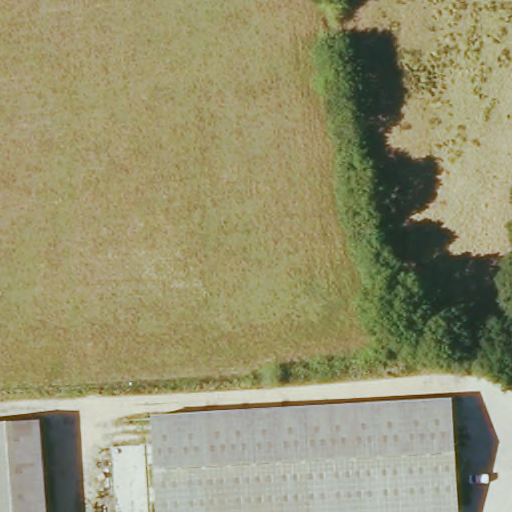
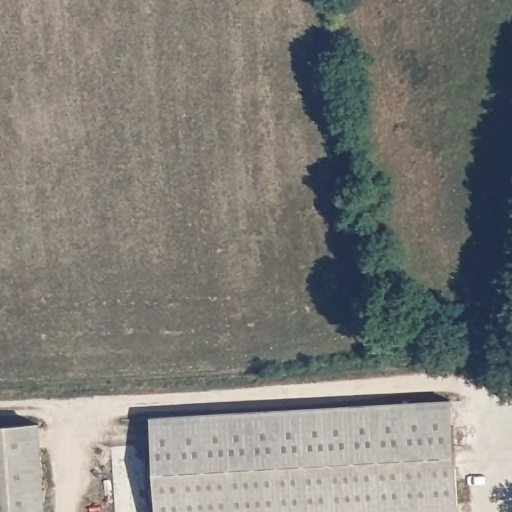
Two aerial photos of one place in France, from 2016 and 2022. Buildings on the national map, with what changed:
unchanged [(152,418),(452,399),(459,512),(157,512),(152,418)]
unchanged [(0,428),(41,425),(48,512),(0,512),(0,428)]

